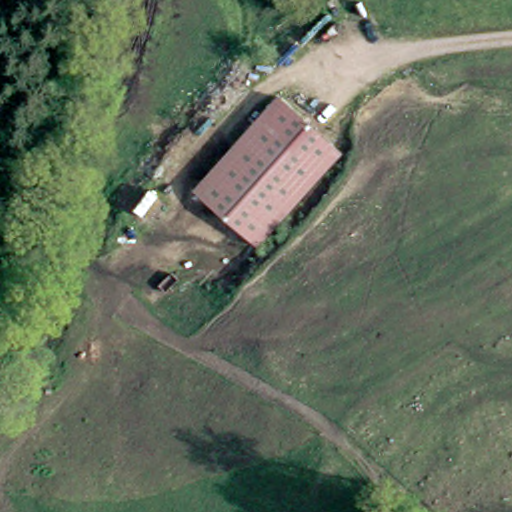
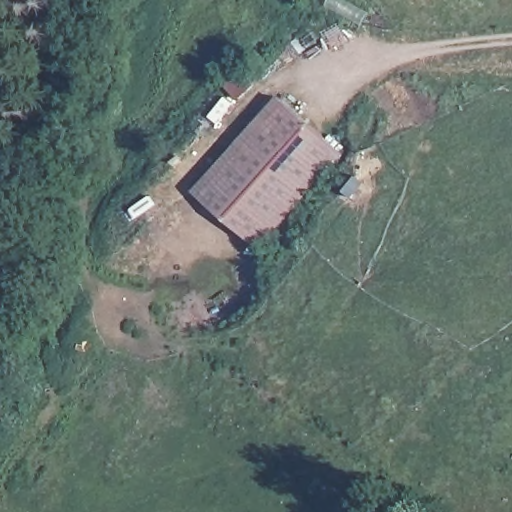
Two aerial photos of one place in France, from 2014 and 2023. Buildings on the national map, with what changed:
unchanged [(250,148),(239,136),(280,92),(342,152),(256,243),(206,195),(250,148)]
unchanged [(206,195),(194,183),(239,136),(250,148),(206,195)]

